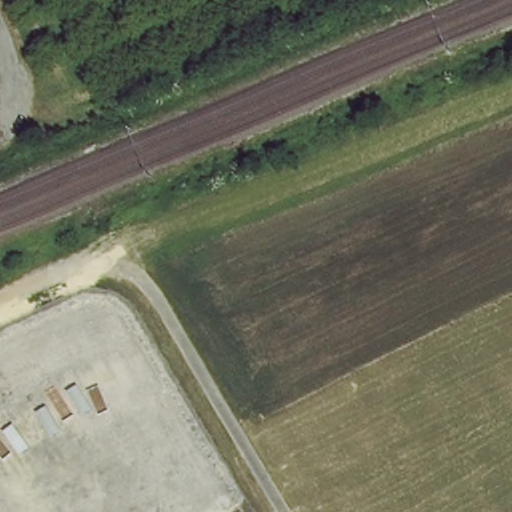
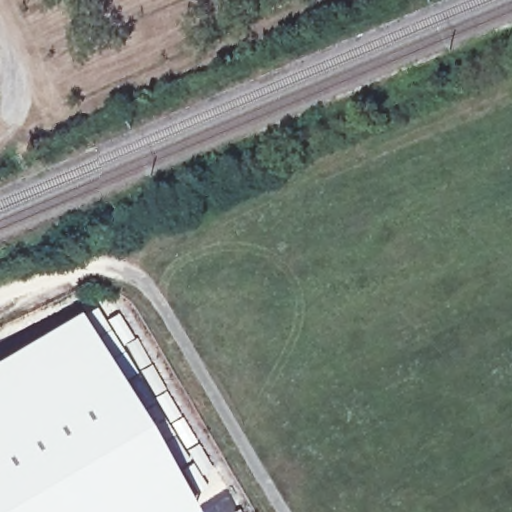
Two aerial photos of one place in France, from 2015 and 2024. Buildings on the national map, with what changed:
new [(98,305),(134,371),(121,380),(82,314),(98,305)]
new [(82,314),(121,380),(197,510),(192,512),(0,512),(0,355),(80,309),(82,314)]

